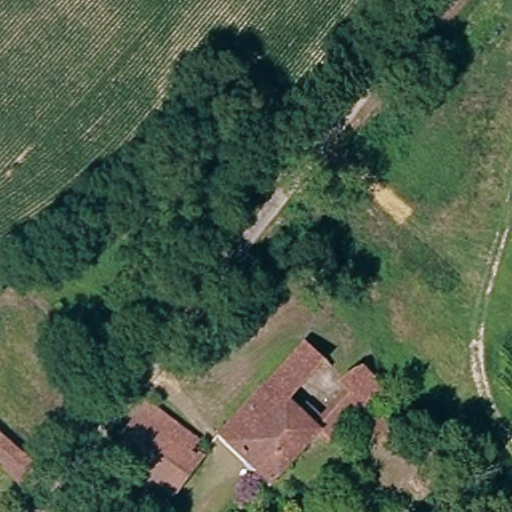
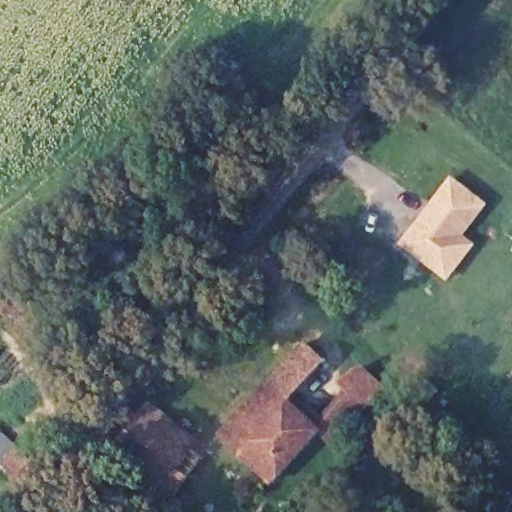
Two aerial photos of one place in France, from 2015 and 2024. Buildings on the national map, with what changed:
new [(476,244),(447,281),(398,243),(450,176),(489,204),(465,235),(476,244)]
unchanged [(281,399),(265,386),(303,343),(320,359),(281,399)]
unchanged [(330,442),(316,430),(352,389),(344,381),(352,371),(367,366),(383,382),(330,442)]
unchanged [(281,399),(316,430),(271,478),(220,435),(265,386),(281,399)]
unchanged [(209,453),(170,500),(112,452),(150,404),(209,453)]
unchanged [(44,450),(53,460),(29,489),(5,462),(6,460),(0,454),(0,427),(35,459),(44,450)]

